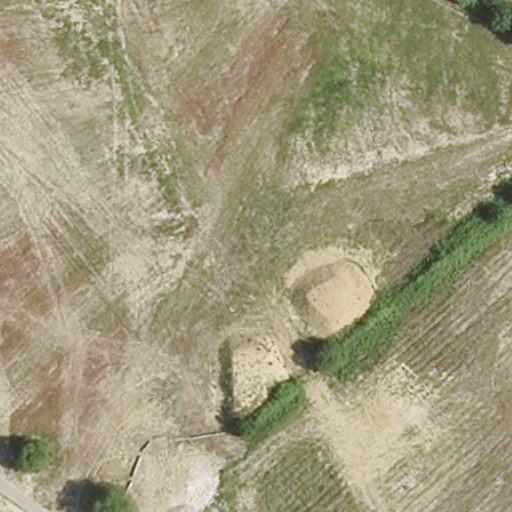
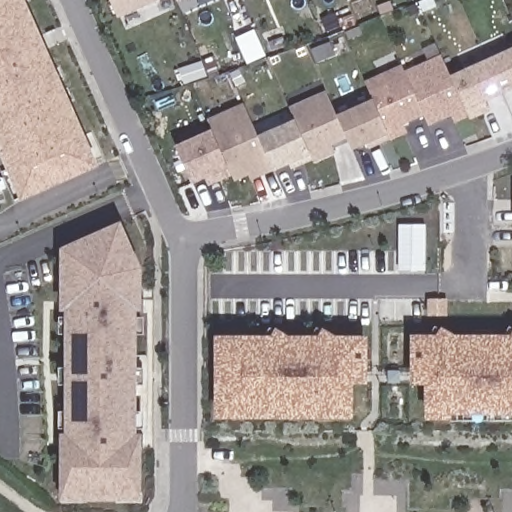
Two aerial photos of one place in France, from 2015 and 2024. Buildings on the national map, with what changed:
new [(25,203),(0,148),(0,0),(26,0),(101,167),(25,203)]
new [(111,0),(161,0),(120,19),(111,0)]
new [(179,2),(178,0),(183,0),(179,2)]
new [(325,20),(338,14),(344,27),(331,33),(325,20)]
new [(471,109),(472,112),(458,119),(456,114),(434,125),(429,115),(409,125),(413,133),(397,141),(396,139),(374,149),(372,144),(357,151),(351,138),(335,146),(339,155),(319,164),(315,155),(279,173),(276,166),(239,183),(237,177),(220,185),(217,178),(198,187),(182,153),(218,136),(212,124),(249,108),(264,141),(301,124),(295,111),(331,94),(343,119),(379,103),(370,84),(407,66),(410,74),(447,57),(457,78),(512,53),(512,90),(471,109)]
new [(496,109),(475,118),(471,109),(491,100),(496,109)]
new [(66,502),(66,492),(68,492),(67,437),(72,437),(71,422),(65,423),(65,394),(71,393),(71,350),(64,350),(64,322),(71,322),(71,307),(66,308),(65,269),(64,269),(63,251),(74,246),(112,228),(121,224),(129,244),(140,269),(140,300),(141,308),(136,307),(138,444),(142,444),(143,452),(143,491),(146,491),(146,501),(121,501),(120,497),(91,498),(91,502),(66,502)]
new [(427,227),(427,268),(401,268),(401,227),(427,227)]
new [(451,414),(451,421),(425,421),(427,385),(411,385),(414,335),(438,335),(444,327),(459,335),(512,336),(512,414),(451,414)]
new [(367,385),(355,385),(354,422),(214,421),(218,334),(274,336),(279,329),(291,334),(321,336),(324,332),(335,337),(367,338),(367,385)]

